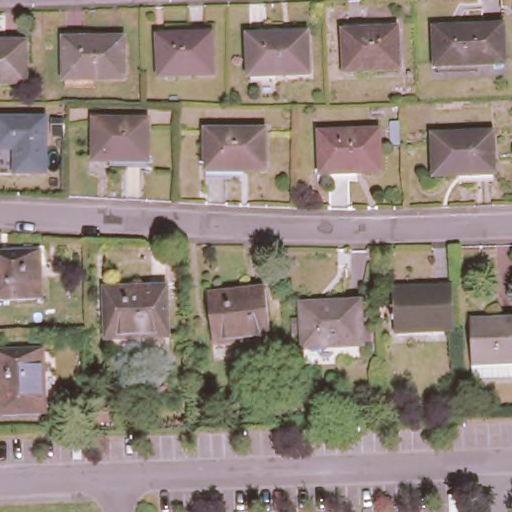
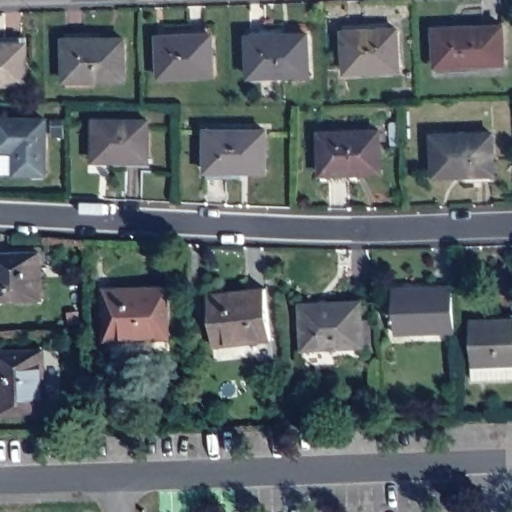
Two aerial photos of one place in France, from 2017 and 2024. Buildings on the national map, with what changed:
unchanged [(438,64),(437,26),(506,24),(507,60),(438,64)]
unchanged [(345,69),(342,29),(397,26),(398,67),(345,69)]
unchanged [(248,74),(246,33),(305,31),(307,71),(248,74)]
unchanged [(65,78),(63,36),(122,35),(123,77),(65,78)]
unchanged [(213,77),(158,79),(157,38),(212,36),(213,77)]
unchanged [(25,46),(26,85),(0,85),(0,47),(25,46)]
unchanged [(0,169),(0,117),(48,117),(47,170),(0,169)]
unchanged [(112,154),(113,156),(92,157),(92,117),(145,118),(145,154),(112,154)]
unchanged [(207,168),(208,127),(268,127),(268,167),(207,168)]
unchanged [(318,161),(318,131),(378,131),(378,172),(325,172),(318,172),(318,161)]
unchanged [(432,177),(431,136),(490,133),(492,174),(432,177)]
unchanged [(0,304),(0,256),(45,256),(46,304),(0,304)]
unchanged [(392,290),(452,288),(453,332),(393,333),(392,290)]
unchanged [(108,340),(107,291),(170,289),(171,339),(108,340)]
unchanged [(210,347),(205,300),(262,292),(269,340),(210,347)]
unchanged [(301,350),(300,306),(358,304),(360,348),(301,350)]
unchanged [(470,318),(512,317),(512,375),(472,377),(470,318)]
unchanged [(0,421),(0,359),(47,357),(50,420),(0,421)]

